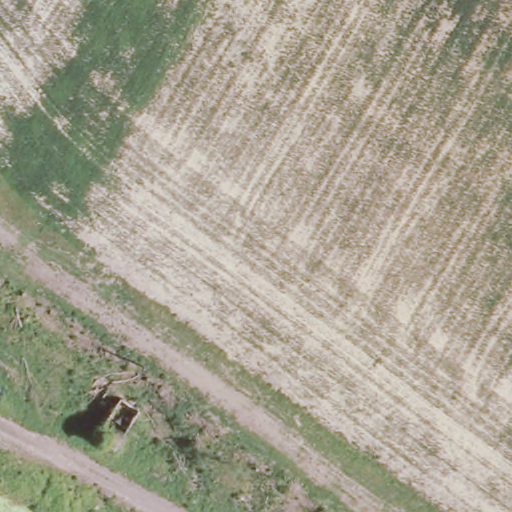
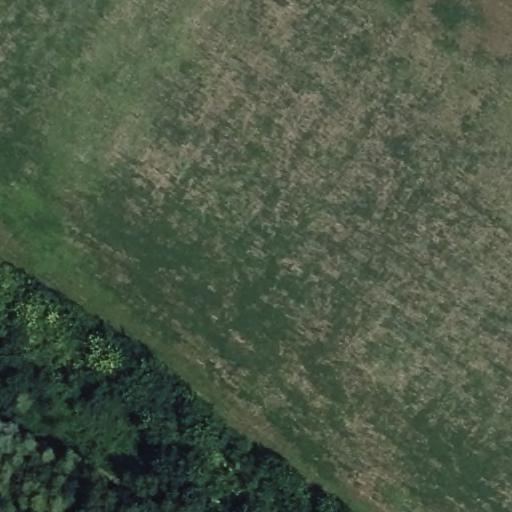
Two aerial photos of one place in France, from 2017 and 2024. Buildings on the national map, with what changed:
unchanged [(136,418),(114,453),(97,442),(115,417),(86,397),(91,388),(136,418)]

